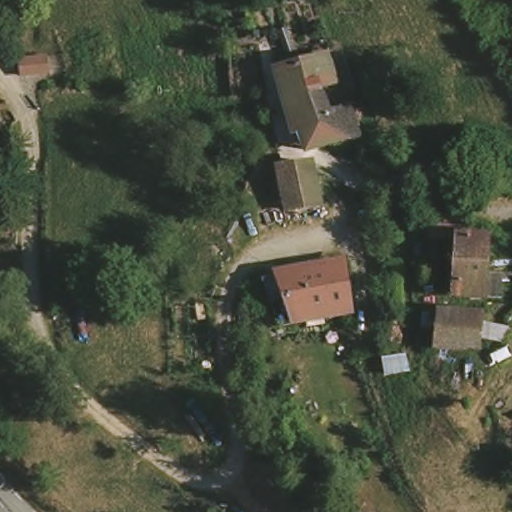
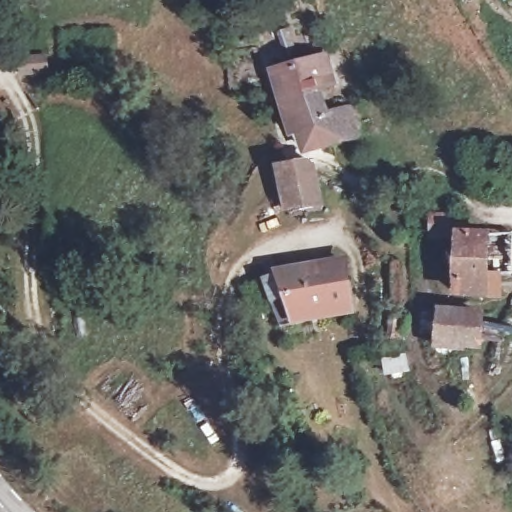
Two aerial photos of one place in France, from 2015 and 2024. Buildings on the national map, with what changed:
unchanged [(286,54),(282,55),(275,35),(279,33),(286,54)]
unchanged [(53,67),(30,69),(27,52),(51,50),(53,67)]
unchanged [(325,91),(325,92),(311,97),(280,108),(280,106),(273,78),(318,65),(325,91)]
unchanged [(349,147),(324,151),(300,159),(280,108),(311,97),(320,120),(340,115),(349,147)]
unchanged [(5,135),(0,133),(0,114),(11,118),(5,135)]
unchanged [(323,208),(292,213),(284,171),(287,170),(315,166),(323,208)]
unchanged [(463,223),(462,243),(433,243),(434,223),(463,223)]
unchanged [(503,301),(492,301),(462,299),(462,289),(455,288),(455,281),(462,281),(462,243),(489,242),(489,244),(490,266),(490,281),(502,280),(503,301)]
unchanged [(352,311),(301,320),(296,305),(282,310),(270,281),(285,274),(346,265),(352,311)]
unchanged [(484,346),(484,351),(442,349),(442,318),(485,320),(485,329),(484,346)]
unchanged [(405,374),(385,378),(380,364),(401,361),(405,374)]

